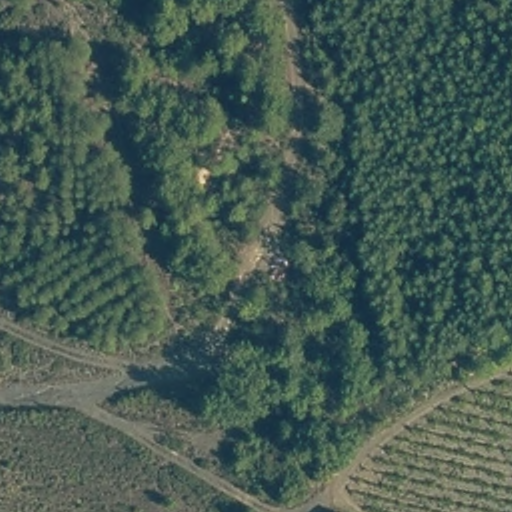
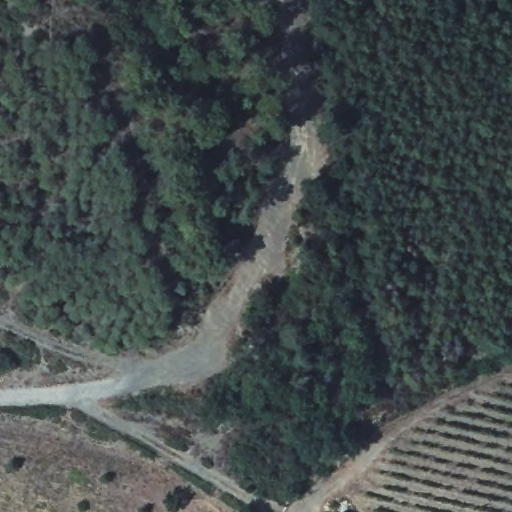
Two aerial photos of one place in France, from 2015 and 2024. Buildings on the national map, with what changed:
unchanged [(341,505),(350,512),(337,512),(341,505)]

